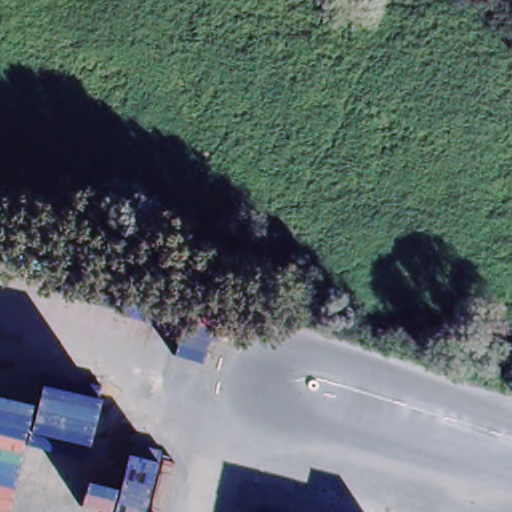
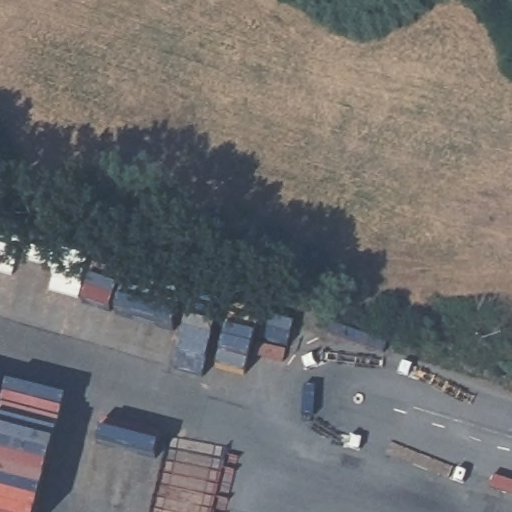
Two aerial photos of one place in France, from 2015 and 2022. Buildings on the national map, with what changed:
[]

